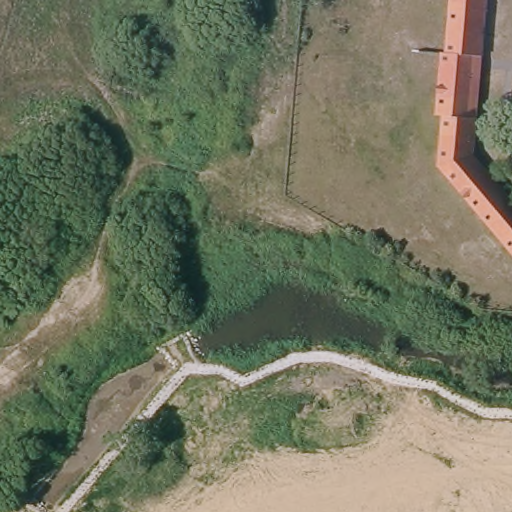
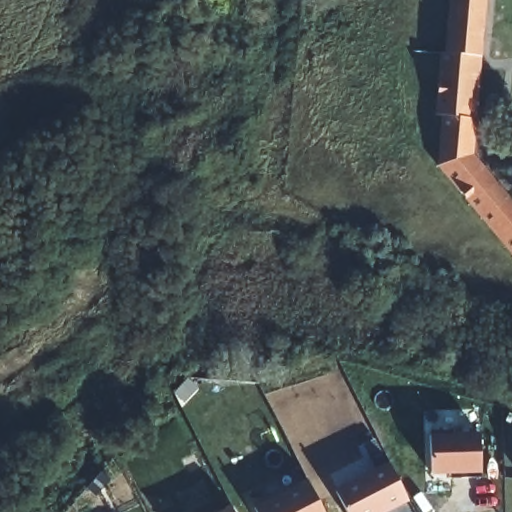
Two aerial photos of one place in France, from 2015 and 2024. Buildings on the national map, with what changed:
unchanged [(512,260),(435,170),(440,117),(435,116),(439,57),(448,57),(453,0),(488,0),(482,59),(477,117),(474,153),(512,202),(512,260)]
new [(431,437),(479,435),(481,476),(430,474),(431,437)]
new [(408,501),(387,512),(348,512),(337,491),(389,463),(408,501)]
new [(324,512),(258,512),(256,507),(309,482),(324,512)]
new [(234,512),(223,512),(232,507),(234,512)]

